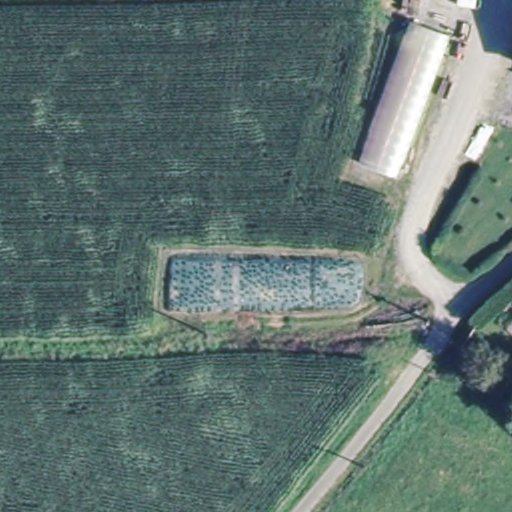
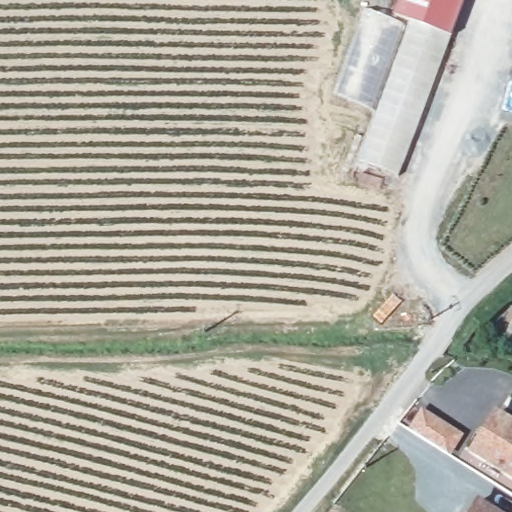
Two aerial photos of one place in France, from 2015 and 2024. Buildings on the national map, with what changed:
new [(450,34),(411,18),(396,12),(400,0),(463,0),(450,34)]
unchanged [(450,34),(398,176),(360,161),(411,18),(450,34)]
new [(465,436),(451,457),(407,429),(422,407),(465,436)]
new [(495,409),(512,420),(512,480),(467,452),(495,409)]
unchanged [(499,512),(467,512),(476,498),(499,512)]
unchanged [(512,512),(510,512),(512,509),(512,512)]

